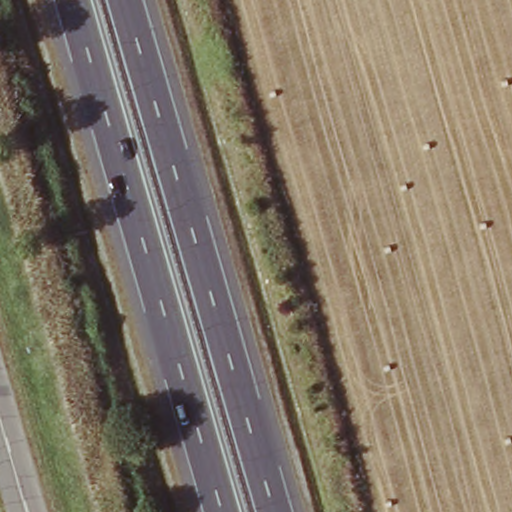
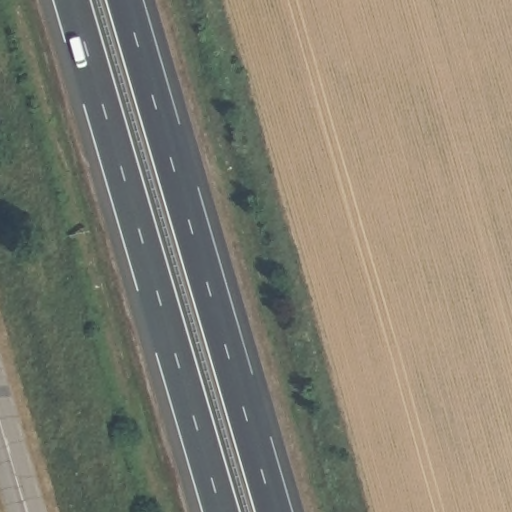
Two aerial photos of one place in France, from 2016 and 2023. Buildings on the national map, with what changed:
[]

